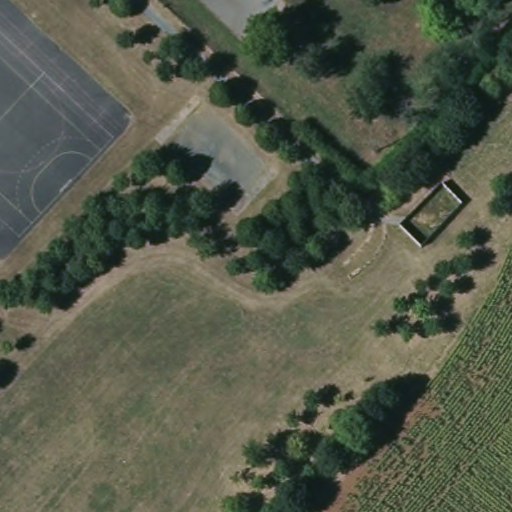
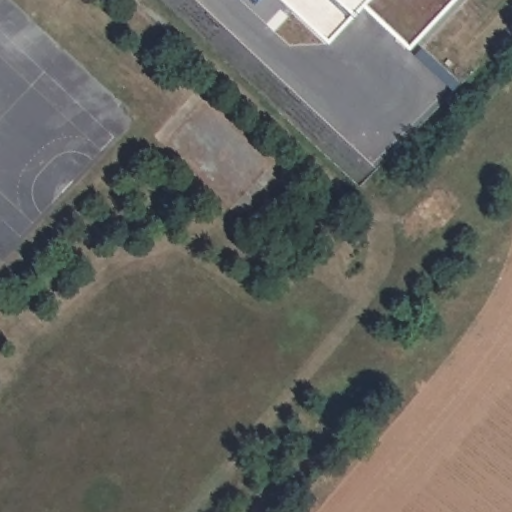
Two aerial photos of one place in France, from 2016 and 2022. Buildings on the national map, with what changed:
new [(367,0),(360,6),(351,17),(326,44),(279,0),(367,0)]
new [(360,6),(367,0),(455,0),(408,51),(360,6)]

